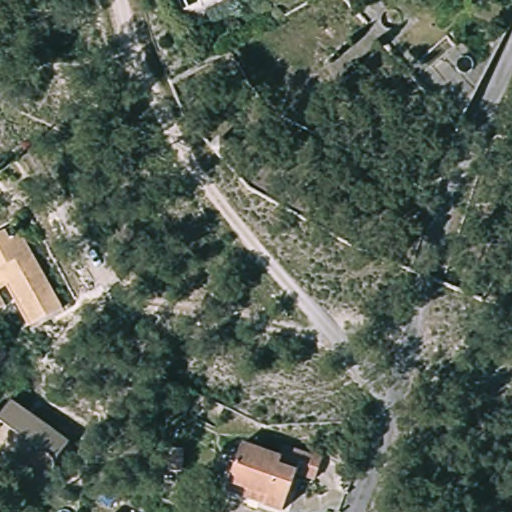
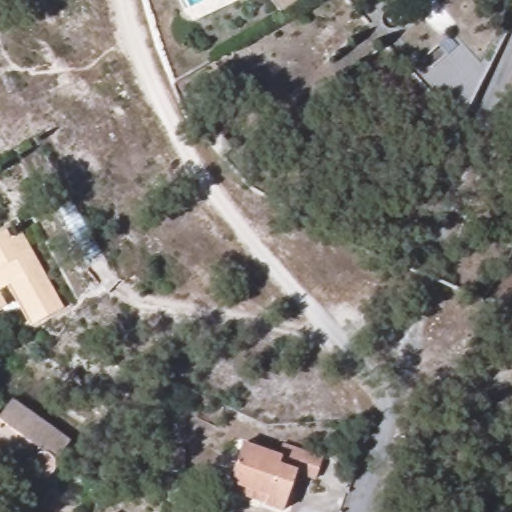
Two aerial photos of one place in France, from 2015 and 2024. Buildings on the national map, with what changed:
unchanged [(219,137),(232,149),(222,160),(210,145),(219,137)]
unchanged [(16,227),(65,310),(34,327),(10,285),(1,290),(11,305),(0,312),(0,237),(16,227)]
unchanged [(8,413),(17,402),(75,440),(56,468),(52,477),(46,480),(40,480),(33,475),(35,470),(0,447),(0,410),(8,413)]
unchanged [(235,486),(244,448),(284,458),(287,447),(323,456),(318,475),(300,471),(290,512),(273,512),(268,511),(230,501),(235,486)]
unchanged [(170,472),(171,448),(185,449),(184,472),(170,472)]

